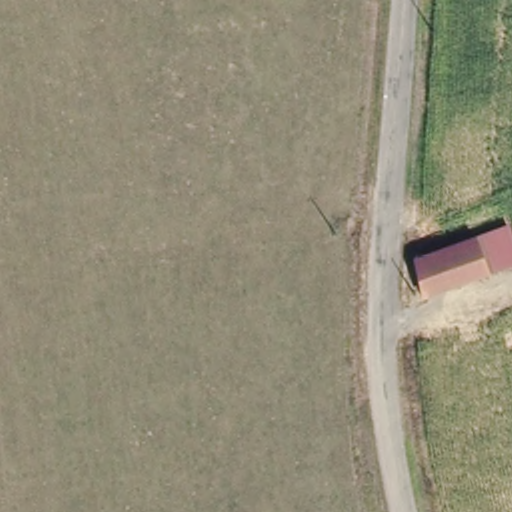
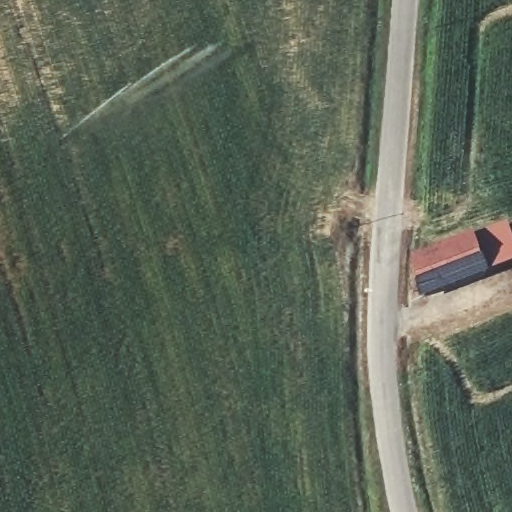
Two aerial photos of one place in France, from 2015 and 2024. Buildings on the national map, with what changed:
unchanged [(500,225),(511,260),(423,292),(413,256),(500,225)]

